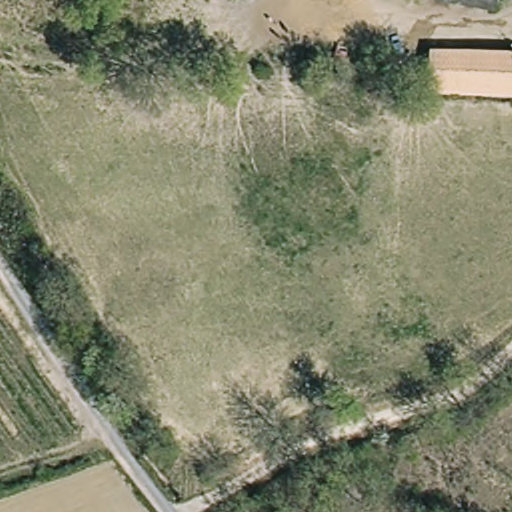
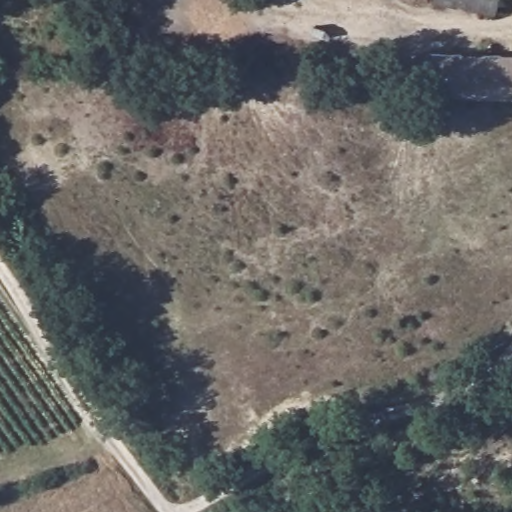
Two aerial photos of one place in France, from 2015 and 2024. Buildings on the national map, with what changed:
unchanged [(433,0),(503,0),(501,19),(433,6),(433,0)]
unchanged [(427,96),(430,54),(512,56),(512,99),(427,96)]

